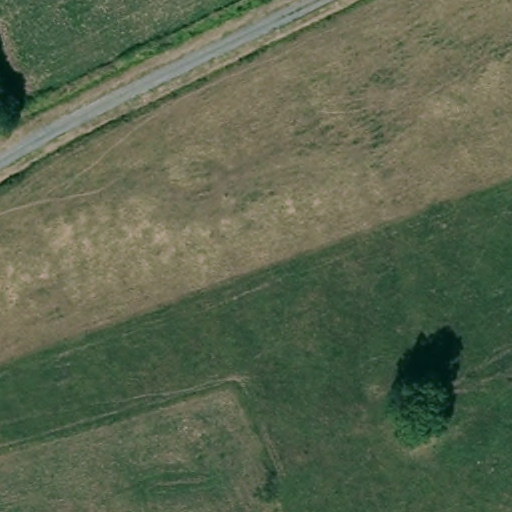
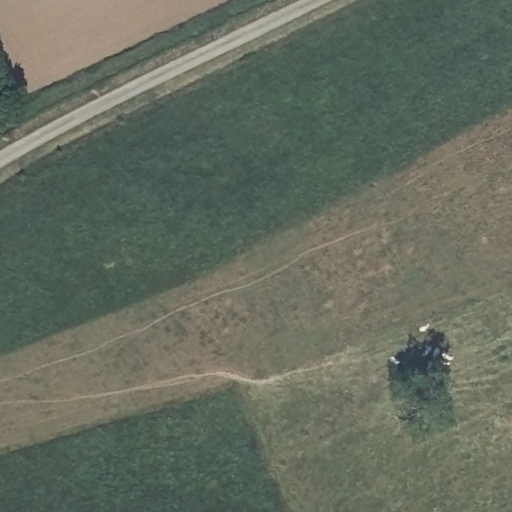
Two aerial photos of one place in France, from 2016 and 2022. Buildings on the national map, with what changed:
[]

